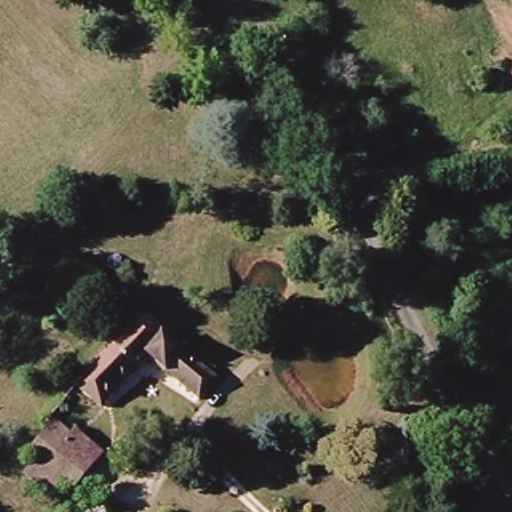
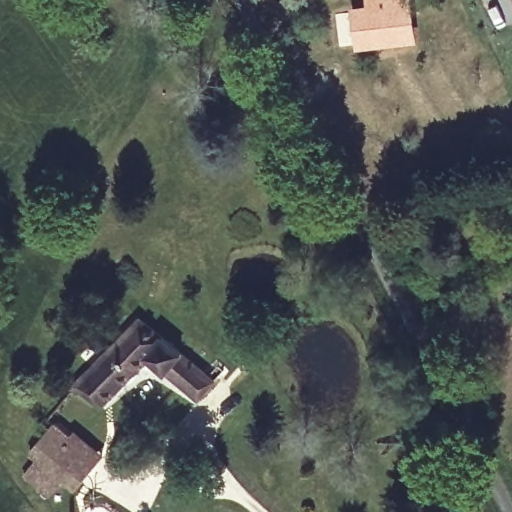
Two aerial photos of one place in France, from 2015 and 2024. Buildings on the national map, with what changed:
new [(348,10),(348,8),(365,4),(364,0),(411,0),(417,42),(353,50),(352,45),(338,47),(333,13),(348,10)]
unchanged [(197,403),(147,364),(99,413),(72,386),(135,321),(158,343),(212,384),(197,403)]
unchanged [(56,479),(38,493),(18,469),(35,455),(27,447),(59,420),(73,437),(80,433),(102,461),(88,474),(67,491),(56,479)]

